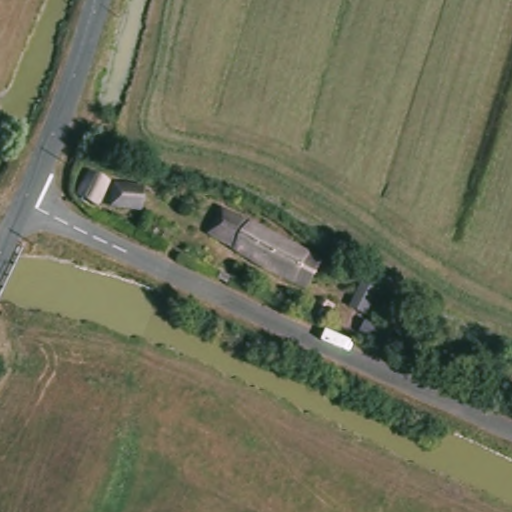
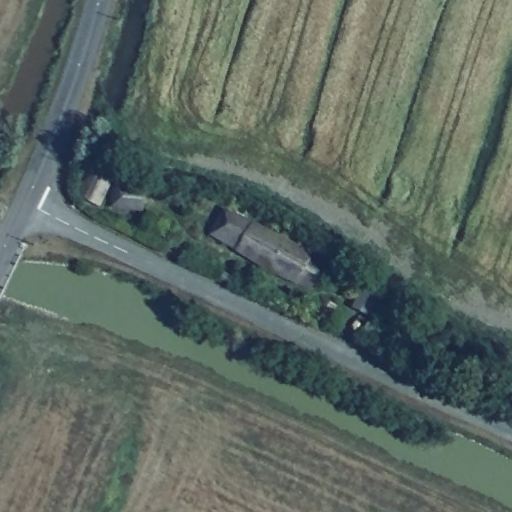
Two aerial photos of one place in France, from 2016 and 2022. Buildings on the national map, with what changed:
unchanged [(102,209),(87,200),(98,181),(113,189),(102,209)]
unchanged [(145,214),(120,214),(122,193),(148,195),(145,214)]
unchanged [(308,292),(209,243),(224,219),(321,268),(308,292)]
unchanged [(338,311),(351,317),(345,331),(343,330),(332,325),(338,311)]

